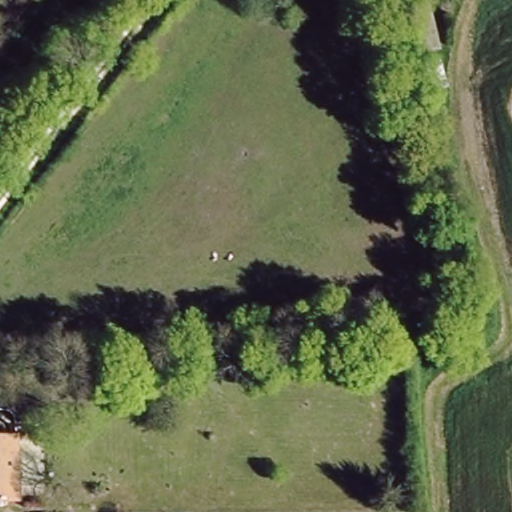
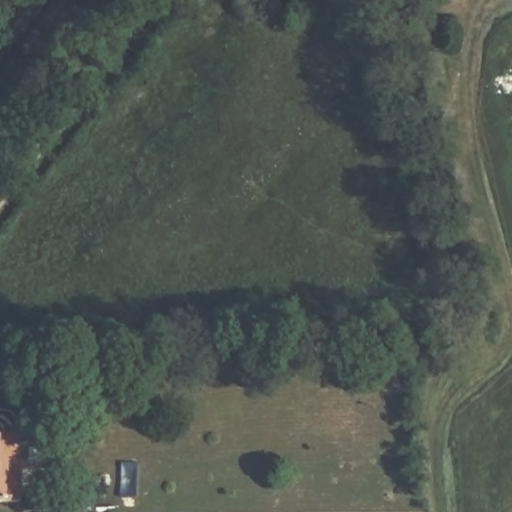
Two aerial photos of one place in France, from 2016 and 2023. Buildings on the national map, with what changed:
unchanged [(21,437),(18,500),(0,499),(0,436),(21,437)]

